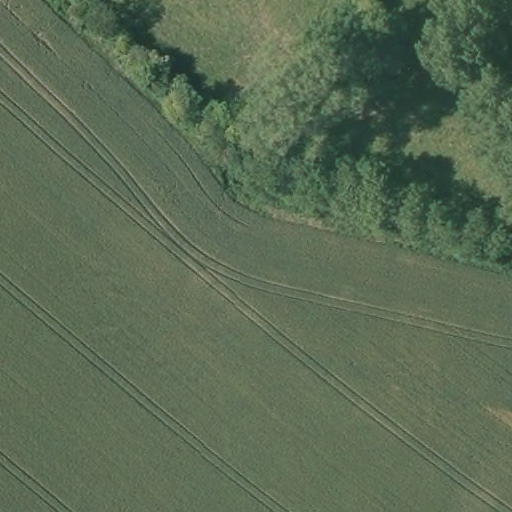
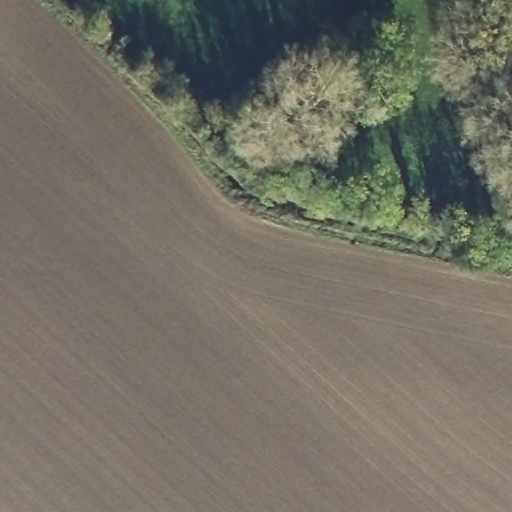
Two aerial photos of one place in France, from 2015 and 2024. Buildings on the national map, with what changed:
[]

